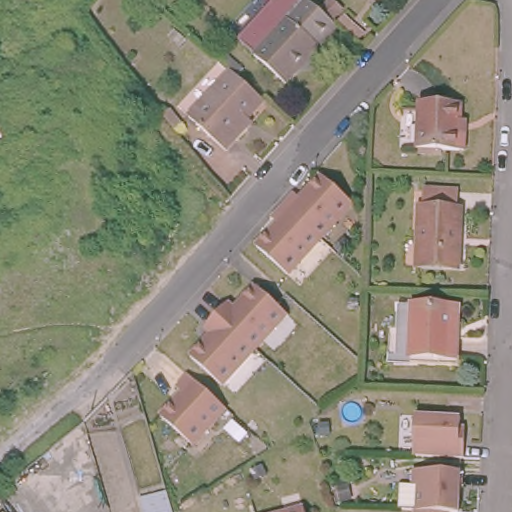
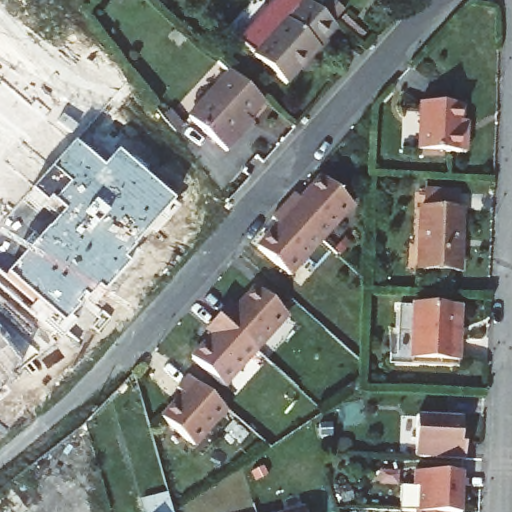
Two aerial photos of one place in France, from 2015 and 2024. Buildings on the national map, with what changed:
unchanged [(321,46),(319,44),(294,71),(298,74),(289,84),(257,55),(258,54),(241,38),(278,0),(311,0),(340,25),(321,46)]
unchanged [(242,128),(220,151),(183,116),(206,92),(226,70),(232,76),(259,100),(242,119),(246,122),(242,128)]
unchanged [(415,107),(444,108),(444,99),(464,100),(463,150),(415,151),(415,107)]
unchanged [(170,110),(182,126),(173,133),(162,117),(170,110)]
new [(5,277),(64,212),(50,200),(46,205),(31,191),(74,142),(102,169),(117,152),(172,202),(132,249),(133,250),(122,262),(127,266),(101,295),(96,291),(87,302),(81,298),(74,307),(77,310),(61,327),(5,277)]
unchanged [(297,192),(305,198),(326,176),(358,203),(325,239),(287,204),(297,192)]
unchanged [(415,205),(425,205),(424,191),(456,192),(455,205),(464,205),(462,265),(415,264),(415,205)]
unchanged [(325,239),(292,273),(261,245),(282,222),(275,216),(287,204),(325,239)]
unchanged [(226,301),(232,307),(254,283),(285,312),(254,348),(224,321),(215,313),(226,301)]
unchanged [(425,358),(399,358),(400,337),(407,337),(409,301),(427,301),(425,355),(425,358)]
unchanged [(469,304),(469,327),(463,326),(462,356),(425,355),(427,301),(469,304)]
unchanged [(224,321),(254,348),(221,383),(190,355),(210,331),(204,325),(215,313),(224,321)]
new [(19,367),(7,377),(11,382),(3,389),(9,394),(0,402),(0,344),(19,367)]
unchanged [(229,406),(197,442),(165,413),(186,390),(180,384),(190,371),(229,406)]
unchanged [(405,456),(407,416),(454,416),(453,425),(462,426),(462,441),(462,459),(405,456)]
unchanged [(410,505),(397,506),(397,481),(410,482),(410,464),(462,466),(462,483),(457,483),(456,507),(446,507),(446,512),(410,512),(410,505)]
unchanged [(310,512),(291,512),(309,507),(310,512)]

